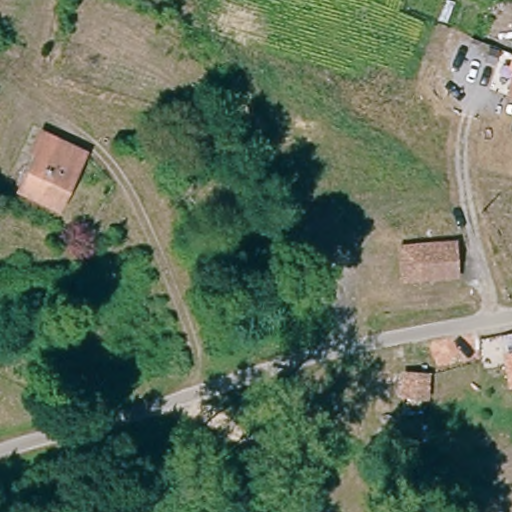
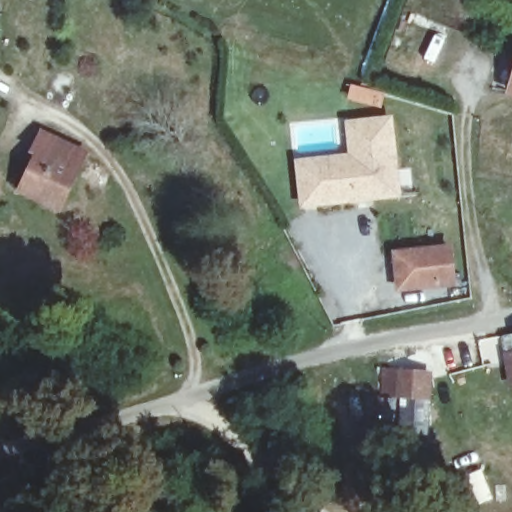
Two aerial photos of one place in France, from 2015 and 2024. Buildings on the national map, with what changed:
unchanged [(509,94),(512,82),(512,95),(509,94)]
new [(402,197),(300,207),(294,157),(348,153),(345,119),(393,115),(402,197)]
unchanged [(58,210),(19,192),(38,154),(33,152),(41,134),(84,154),(58,210)]
unchanged [(454,244),(457,276),(404,281),(401,249),(454,244)]
unchanged [(512,387),(506,356),(512,355),(512,386),(512,387)]
new [(384,367),(434,370),(432,401),(383,398),(384,367)]

